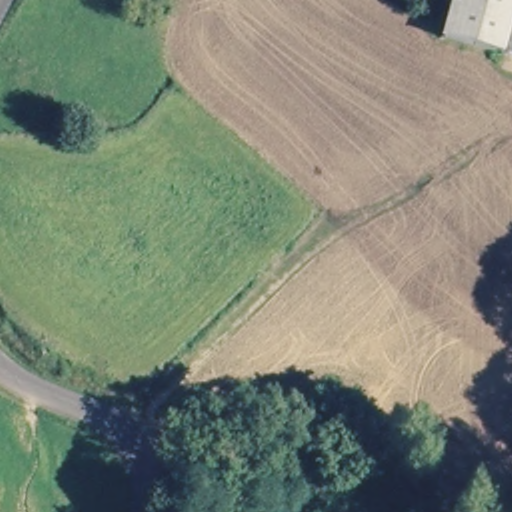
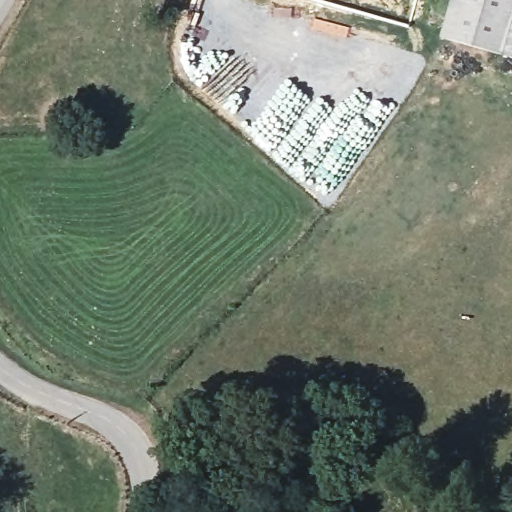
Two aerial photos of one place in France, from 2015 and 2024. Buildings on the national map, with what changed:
unchanged [(444,42),(453,0),(512,0),(512,57),(507,56),(444,42)]

